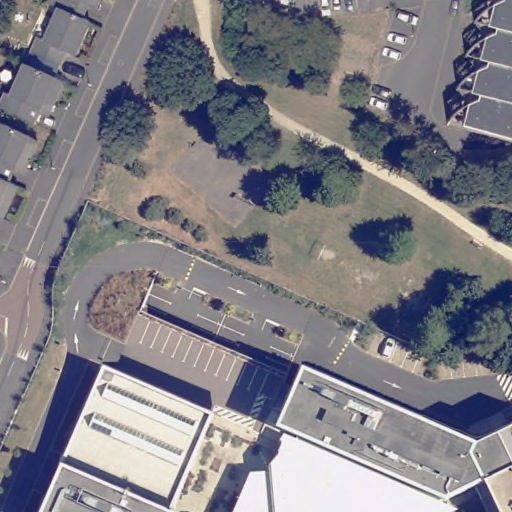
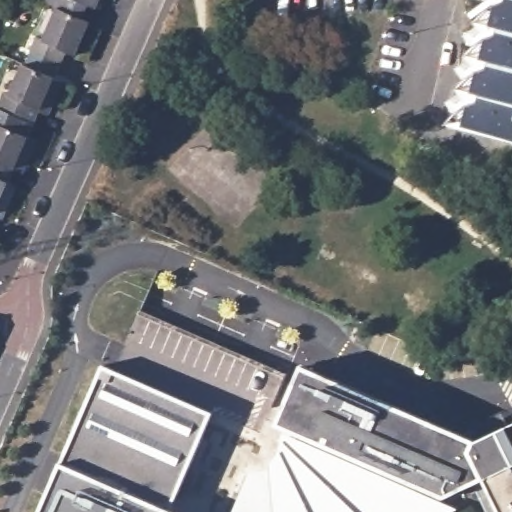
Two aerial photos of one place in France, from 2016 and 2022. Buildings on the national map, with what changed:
unchanged [(83,2),(78,16),(54,5),(43,0),(99,0),(96,7),(83,2)]
unchanged [(497,23),(501,4),(512,3),(512,27),(508,26),(497,23)]
unchanged [(75,56),(64,50),(58,64),(29,50),(36,36),(41,39),(54,5),(78,16),(89,21),(75,56)]
unchanged [(499,60),(488,57),(493,36),(506,34),(508,26),(512,27),(512,64),(499,60)]
unchanged [(490,96),(478,92),(484,71),(497,69),(499,60),(512,64),(512,101),(490,96)]
unchanged [(63,81),(51,106),(41,101),(33,121),(0,107),(0,103),(6,91),(10,94),(23,63),(63,81)]
unchanged [(469,130),(475,106),(488,104),(490,96),(512,101),(512,142),(469,130)]
unchanged [(27,170),(17,165),(9,186),(0,183),(0,129),(37,145),(27,170)]
unchanged [(18,190),(7,217),(0,214),(0,183),(9,186),(18,190)]
unchanged [(173,512),(40,512),(61,462),(104,364),(213,411),(168,510),(173,512)]
unchanged [(249,471),(270,470),(269,465),(279,452),(276,449),(282,442),(278,439),(286,426),(276,423),(304,365),(473,439),(493,430),(497,439),(469,452),(481,478),(444,497),(460,507),(450,512),(234,512),(249,471)]
unchanged [(512,421),(512,512),(496,512),(469,452),(497,439),(493,430),(512,421)]

